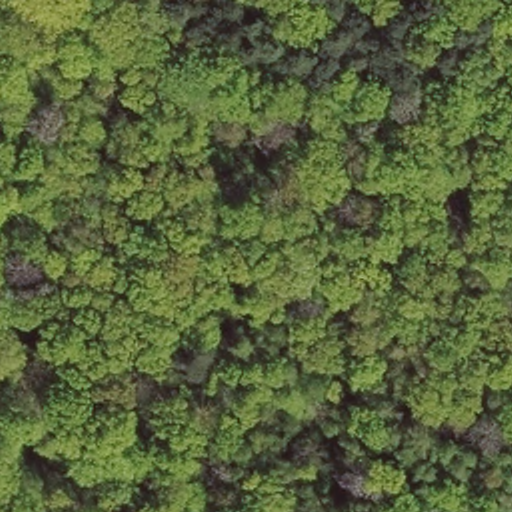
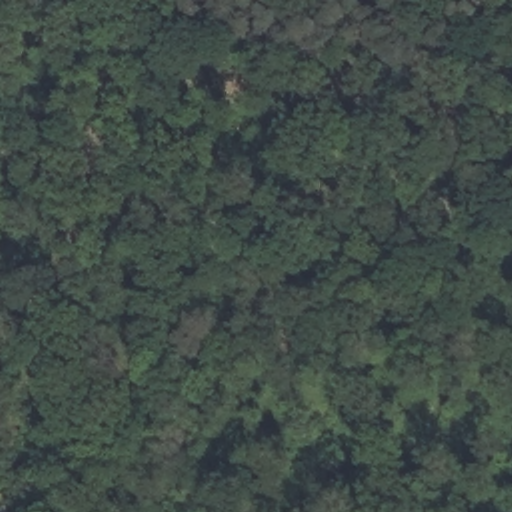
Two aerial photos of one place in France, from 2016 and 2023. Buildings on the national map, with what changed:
[]

